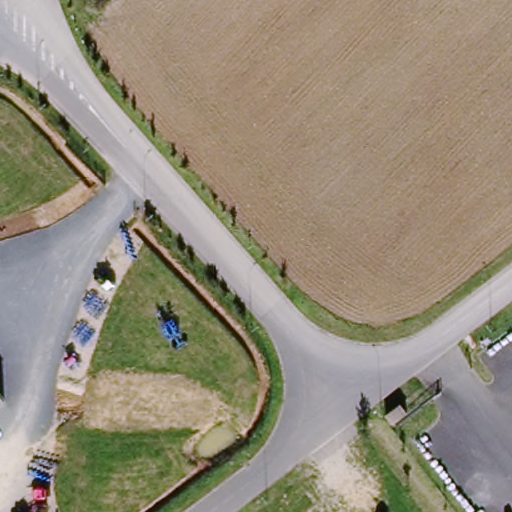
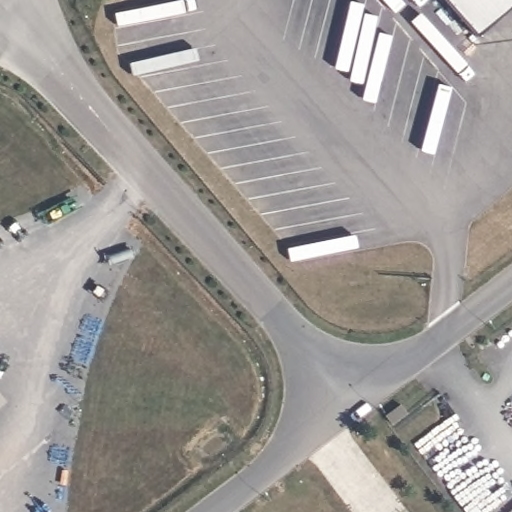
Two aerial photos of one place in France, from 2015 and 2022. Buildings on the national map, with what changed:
new [(441,0),(512,0),(512,6),(475,39),(441,0)]

